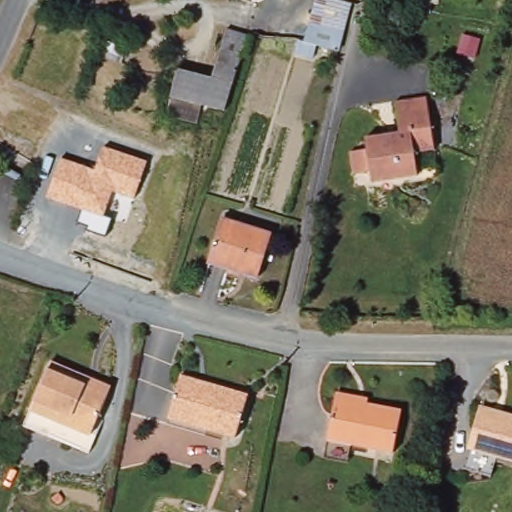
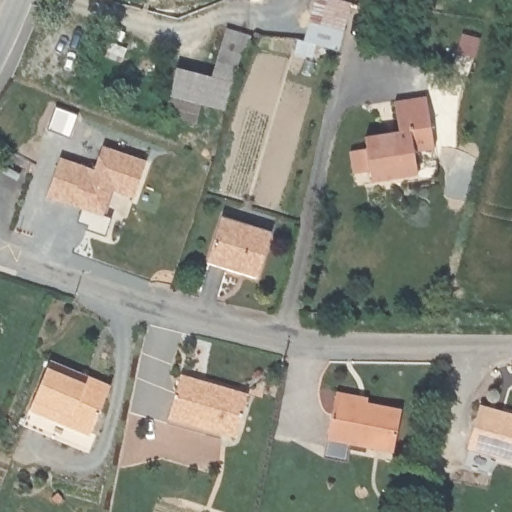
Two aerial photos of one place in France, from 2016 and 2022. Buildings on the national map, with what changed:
unchanged [(344,54),(304,43),(316,0),(327,0),(356,9),(344,54)]
unchanged [(209,95),(218,67),(239,74),(219,130),(163,114),(172,85),(209,95)]
unchanged [(368,136),(401,131),(399,103),(431,99),(438,151),(420,154),(423,178),(374,185),(372,171),(354,174),(351,151),(370,149),(368,136)]
unchanged [(96,170),(103,147),(146,162),(134,200),(112,192),(105,217),(110,218),(105,236),(88,231),(90,225),(79,221),(83,209),(46,196),(59,157),(96,170)]
unchanged [(273,235),(260,278),(212,263),(226,220),(273,235)]
unchanged [(93,443),(50,424),(29,414),(57,352),(95,368),(117,378),(113,386),(95,425),(100,427),(93,443)]
unchanged [(205,385),(207,378),(249,388),(238,431),(209,423),(206,431),(167,421),(178,378),(205,385)]
unchanged [(404,406),(395,448),(367,442),(366,450),(325,441),(335,392),(404,406)]
unchanged [(505,411),(512,412),(512,461),(467,447),(477,413),(501,420),(505,411)]
unchanged [(1,457),(0,461),(0,450),(4,452),(1,457)]

